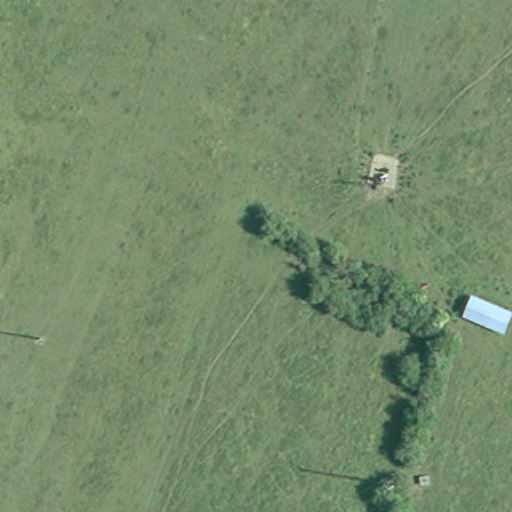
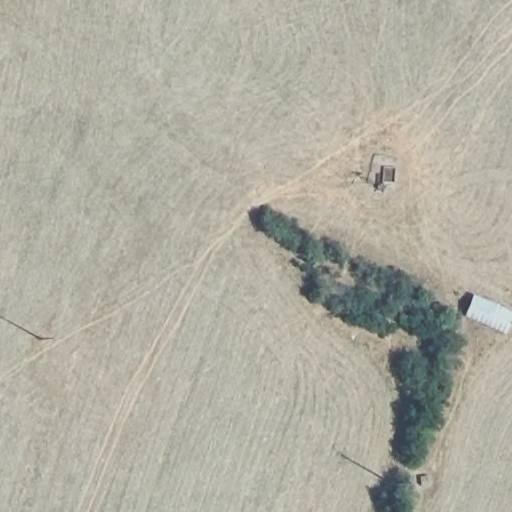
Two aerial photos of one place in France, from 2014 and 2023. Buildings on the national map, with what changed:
unchanged [(469,317),(475,300),(512,315),(512,316),(505,332),(469,317)]

